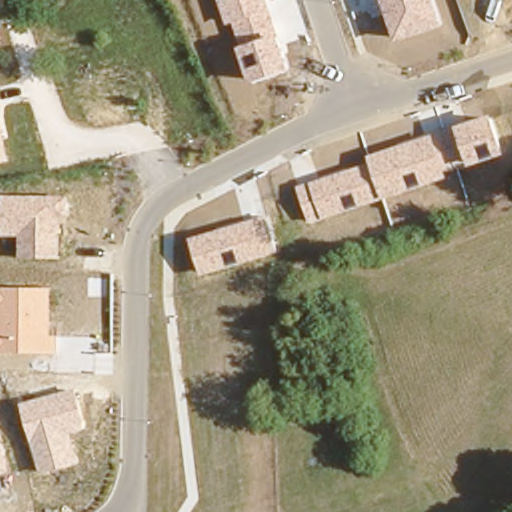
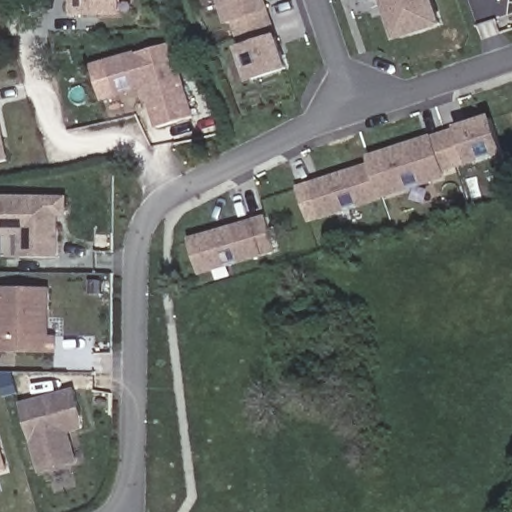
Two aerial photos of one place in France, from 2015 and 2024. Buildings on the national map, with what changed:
new [(71,16),(70,0),(120,0),(121,15),(71,16)]
unchanged [(290,70),(250,84),(239,48),(243,46),(233,24),(227,26),(218,0),(266,0),(270,11),(278,35),(290,70)]
unchanged [(395,41),(382,0),(434,0),(443,25),(395,41)]
unchanged [(0,7),(1,43),(0,43),(0,7)]
new [(157,128),(145,89),(117,97),(107,59),(137,51),(137,53),(174,43),(194,117),(157,128)]
unchanged [(0,113),(10,160),(0,162),(0,113)]
unchanged [(490,115),(505,155),(470,166),(445,174),(446,179),(383,199),(322,219),(308,223),(296,187),(310,182),(369,162),(366,155),(431,134),(456,129),(455,126),(490,115)]
unchanged [(60,258),(20,258),(20,235),(2,235),(2,196),(69,197),(68,219),(60,218),(60,258)]
unchanged [(265,256),(200,275),(190,238),(255,219),(267,215),(277,253),(265,256)]
unchanged [(59,353),(0,354),(0,286),(51,288),(51,337),(59,335),(59,353)]
unchanged [(41,473),(22,404),(76,389),(85,429),(71,433),(79,464),(41,473)]
unchanged [(0,474),(0,436),(9,471),(0,474)]

